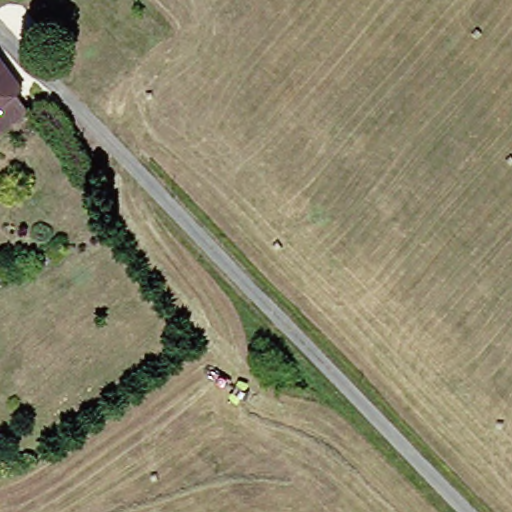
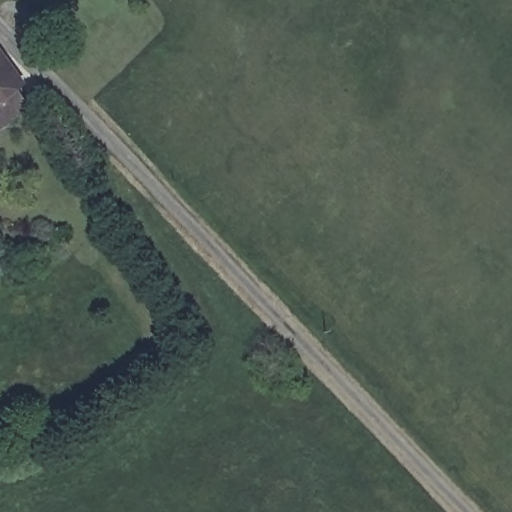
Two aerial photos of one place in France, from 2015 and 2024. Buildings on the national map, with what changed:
unchanged [(0,139),(0,48),(31,84),(19,95),(33,111),(0,139)]

